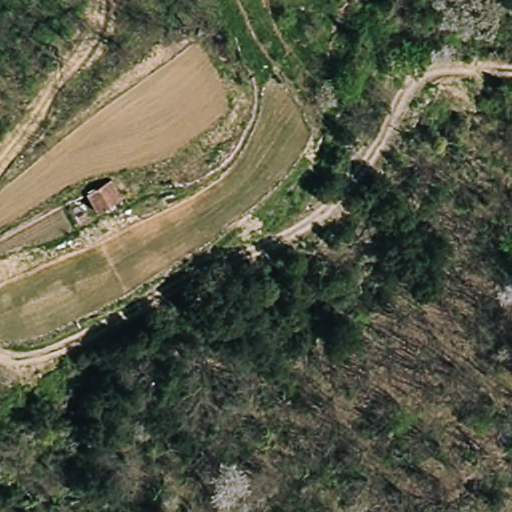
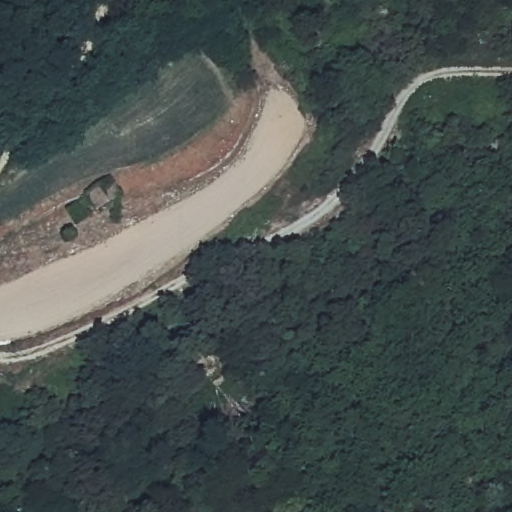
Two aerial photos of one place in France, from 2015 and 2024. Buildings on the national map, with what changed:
unchanged [(126,188),(103,209),(91,194),(113,174),(126,188)]

